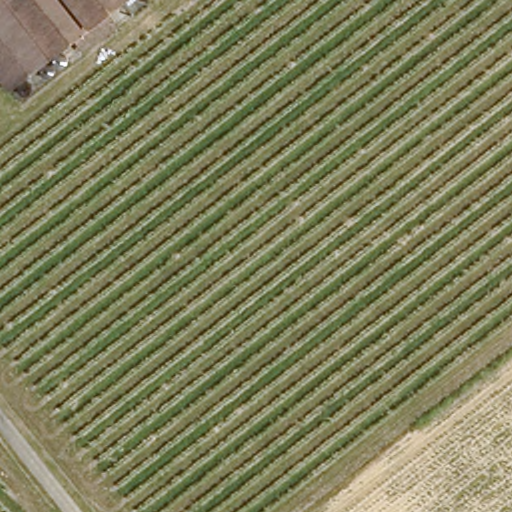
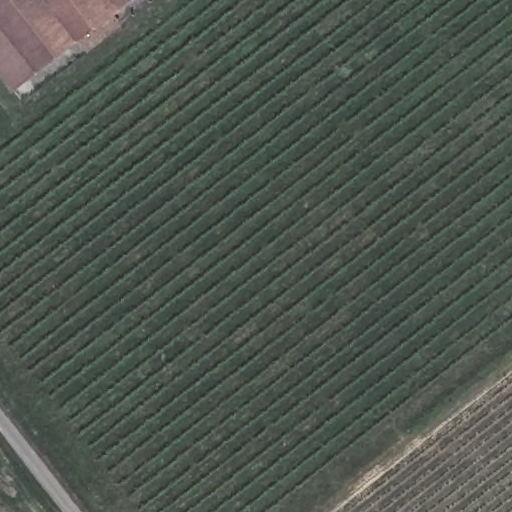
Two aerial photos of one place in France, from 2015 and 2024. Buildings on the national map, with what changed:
unchanged [(92,40),(80,49),(72,37),(9,87),(0,75),(0,0),(154,0),(127,20),(115,4),(101,15),(110,28),(92,40)]

